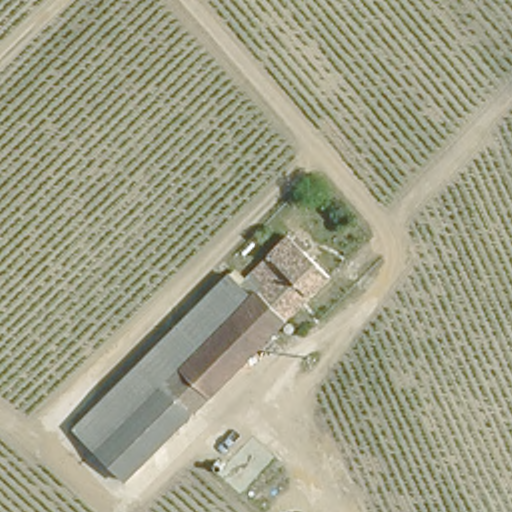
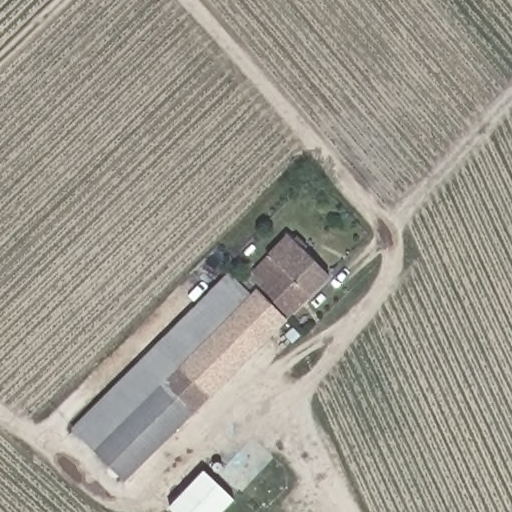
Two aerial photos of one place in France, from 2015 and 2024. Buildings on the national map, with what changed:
unchanged [(264,283),(266,281),(253,268),(287,234),(329,275),(293,312),(264,283)]
unchanged [(239,287),(251,298),(186,367),(126,429),(101,405),(145,359),(190,313),(227,275),(239,287)]
unchanged [(251,298),(264,283),(293,312),(287,318),(212,393),(186,367),(251,298)]
unchanged [(212,393),(204,402),(179,427),(132,476),(80,427),(101,405),(126,429),(186,367),(212,393)]
new [(234,501),(223,512),(171,512),(168,510),(203,472),(219,487),(234,501)]

